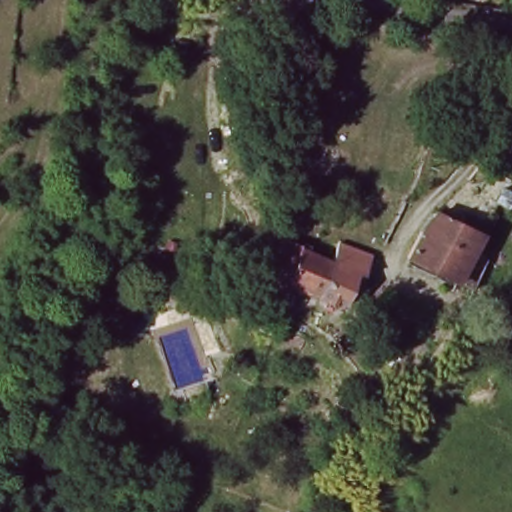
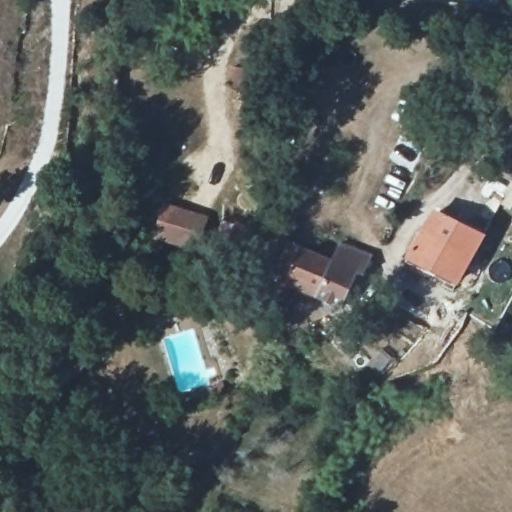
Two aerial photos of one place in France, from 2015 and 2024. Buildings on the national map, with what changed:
unchanged [(492,192),(503,174),(512,179),(512,202),(492,192)]
new [(209,216),(198,252),(153,238),(163,202),(209,216)]
unchanged [(470,292),(452,283),(403,257),(430,212),(434,214),(475,237),(465,260),(484,269),(470,292)]
unchanged [(261,288),(273,259),(279,244),(282,237),(301,245),(311,249),(330,257),(315,295),(312,301),(284,289),(281,297),(261,288)]
unchanged [(337,241),(370,255),(362,274),(354,271),(341,304),(315,295),(330,257),(337,241)]
unchanged [(304,351),(299,357),(291,352),(273,341),(276,335),(304,351)]

